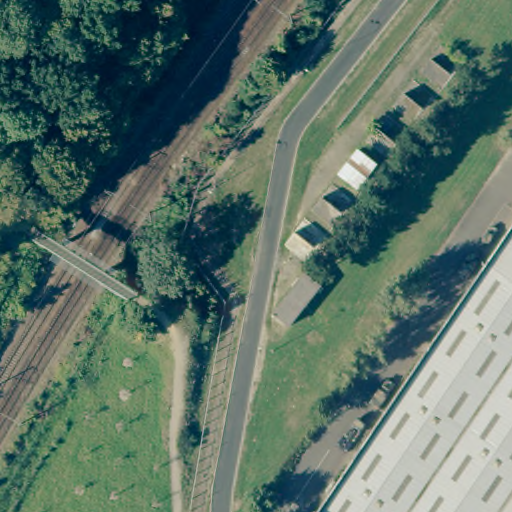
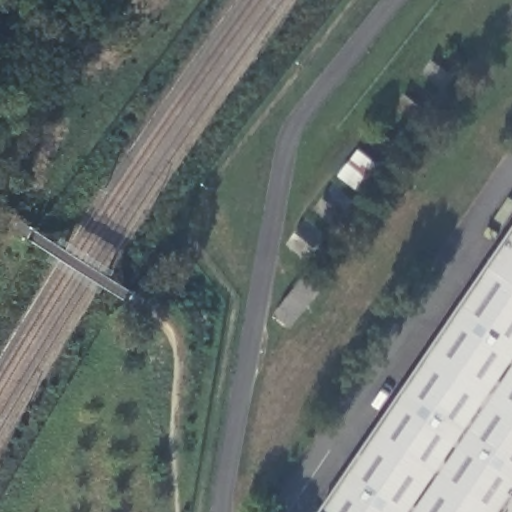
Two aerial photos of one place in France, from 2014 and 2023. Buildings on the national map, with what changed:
unchanged [(512,228),(512,512),(319,512),(348,470),(512,228)]
unchanged [(304,273),(323,288),(291,329),(271,316),(304,273)]

